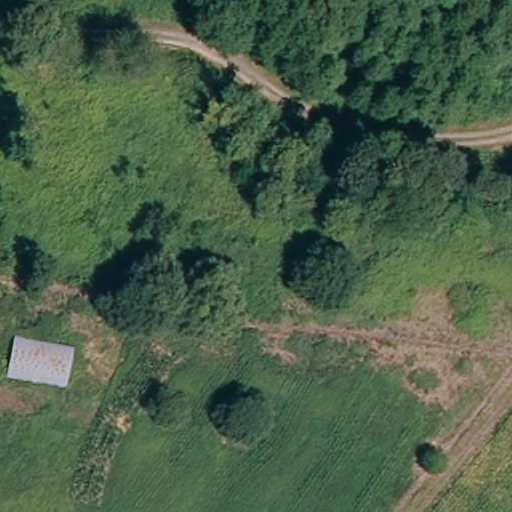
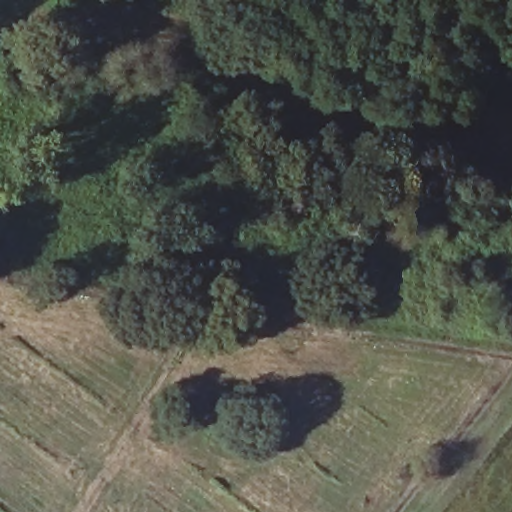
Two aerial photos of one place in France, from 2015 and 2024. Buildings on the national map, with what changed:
demolished [(66,387),(8,376),(16,338),(74,345),(66,387)]

